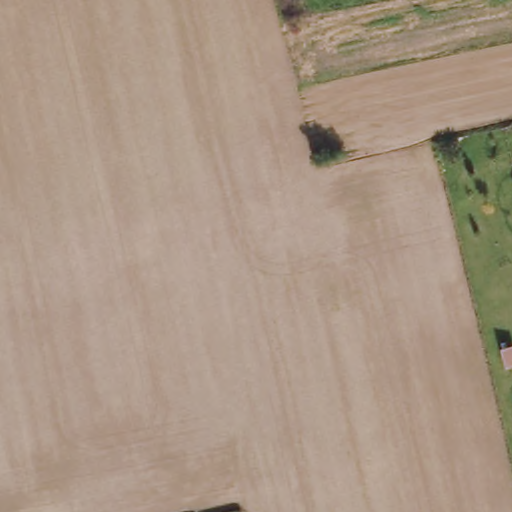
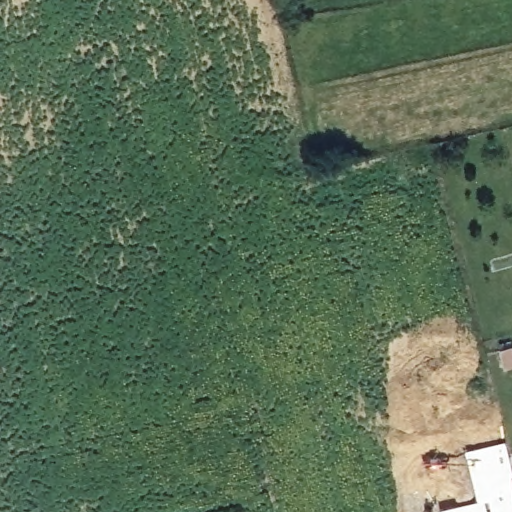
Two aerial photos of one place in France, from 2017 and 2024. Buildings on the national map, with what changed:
unchanged [(512,355),(512,361),(502,364),(498,347),(510,344),(512,355)]
new [(479,502),(468,451),(508,442),(512,455),(512,512),(442,512),(442,510),(479,502)]

